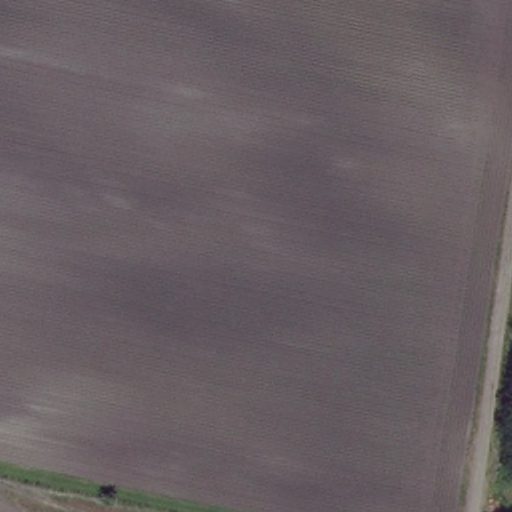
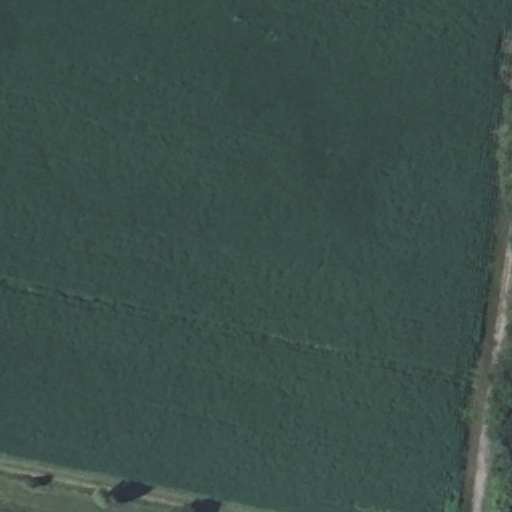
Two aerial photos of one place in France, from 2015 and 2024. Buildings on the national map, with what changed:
[]

